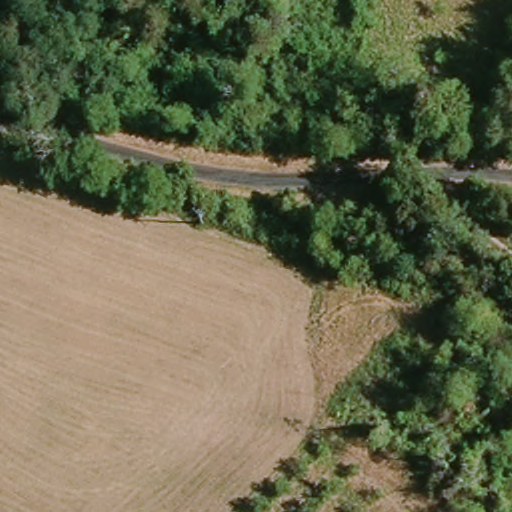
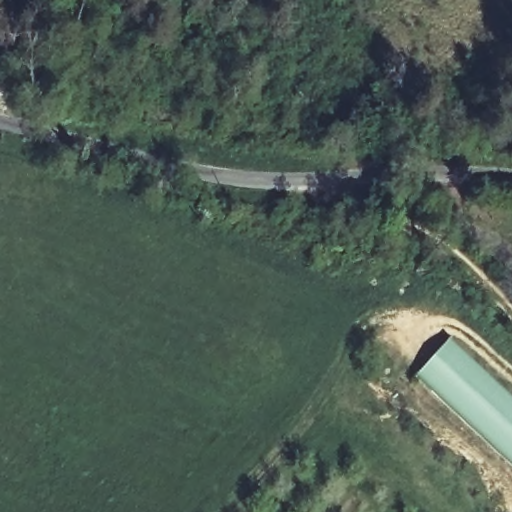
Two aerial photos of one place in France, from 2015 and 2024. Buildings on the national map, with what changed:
new [(418,375),(453,337),(512,394),(512,463),(418,375)]

